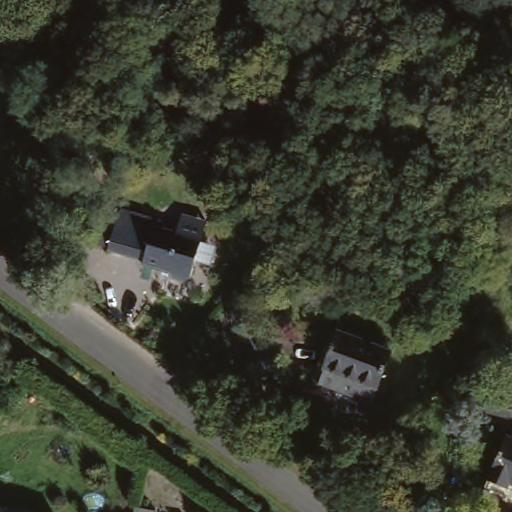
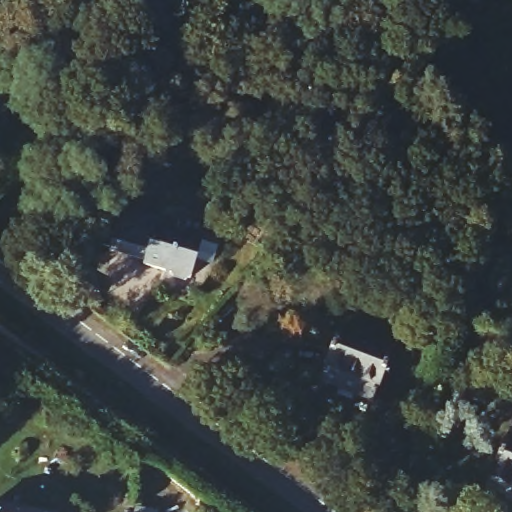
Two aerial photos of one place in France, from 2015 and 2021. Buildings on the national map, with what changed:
unchanged [(146,265),(148,256),(111,247),(122,207),(160,216),(159,226),(204,237),(190,275),(146,265)]
unchanged [(47,265),(51,249),(63,252),(59,268),(47,265)]
unchanged [(341,335),(393,355),(375,407),(323,387),(341,335)]
unchanged [(506,436),(512,439),(512,483),(504,479),(500,487),(486,480),(506,436)]
unchanged [(145,499),(143,512),(133,512),(136,497),(145,499)]
unchanged [(5,512),(5,508),(32,512),(5,512)]

